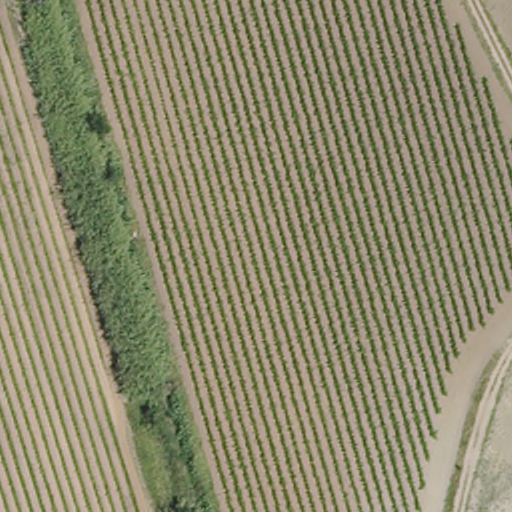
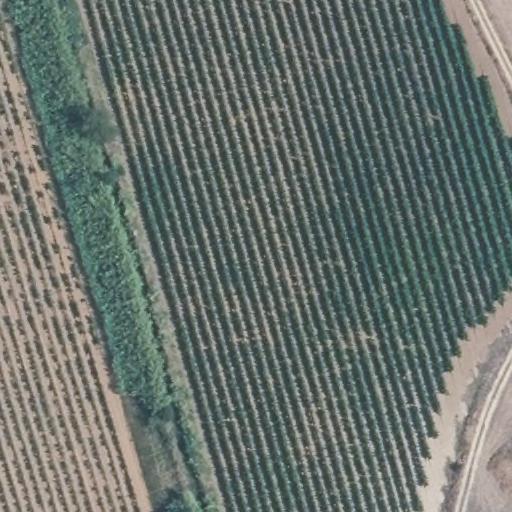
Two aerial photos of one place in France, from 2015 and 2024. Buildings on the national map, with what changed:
[]

